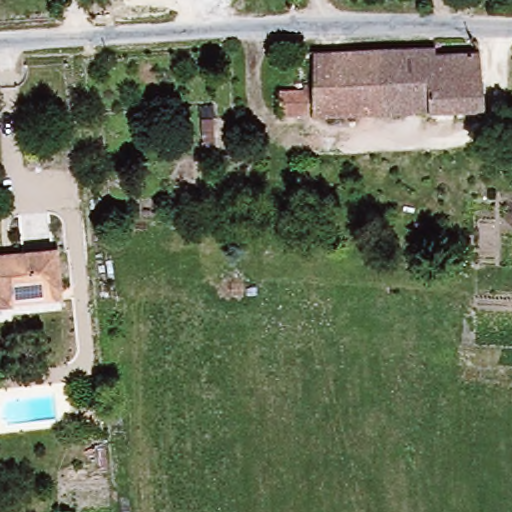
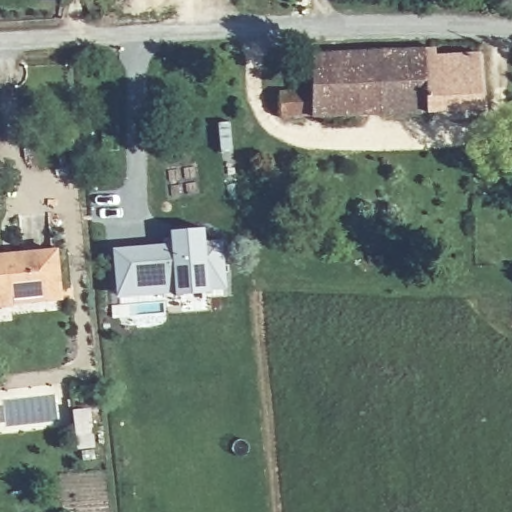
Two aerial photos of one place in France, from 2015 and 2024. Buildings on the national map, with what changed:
unchanged [(312,86),(311,54),(437,49),(437,55),(482,53),(485,109),(282,119),(280,95),(305,95),(305,86),(312,86)]
new [(206,226),(208,247),(224,248),(227,291),(174,297),(170,241),(169,230),(206,226)]
new [(170,241),(174,297),(117,304),(112,247),(170,241)]
unchanged [(0,305),(0,256),(56,249),(60,287),(61,300),(12,305),(0,305)]

